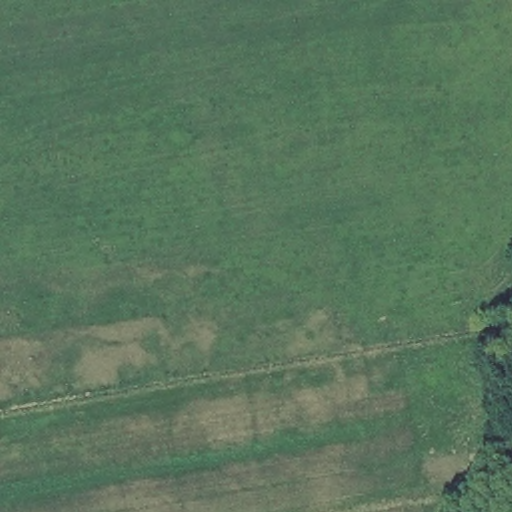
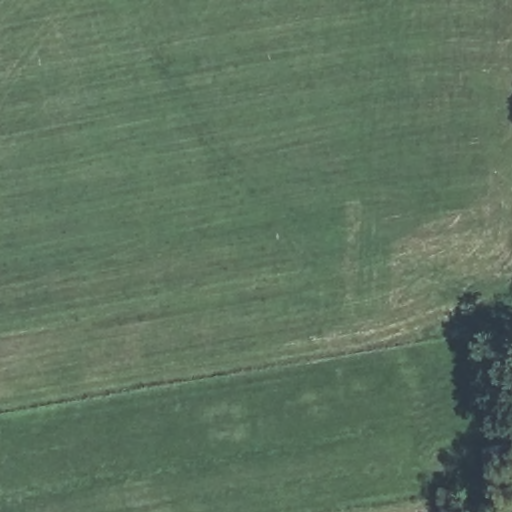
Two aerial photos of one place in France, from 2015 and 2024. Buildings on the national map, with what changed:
unchanged [(487,452),(512,448),(512,468),(485,471),(487,452)]

